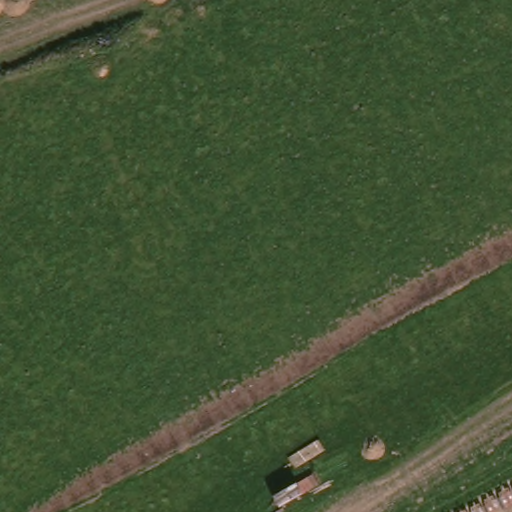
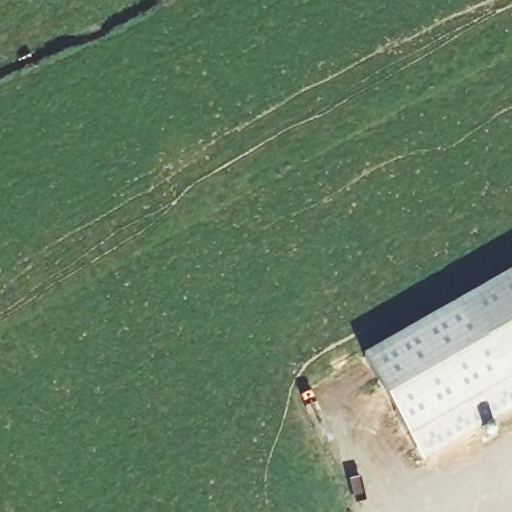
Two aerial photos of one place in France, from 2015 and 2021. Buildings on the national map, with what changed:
new [(409,437),(363,355),(512,270),(512,410),(423,461),(409,437)]

